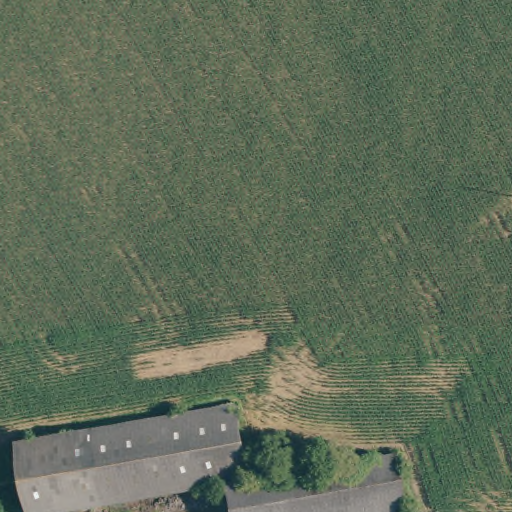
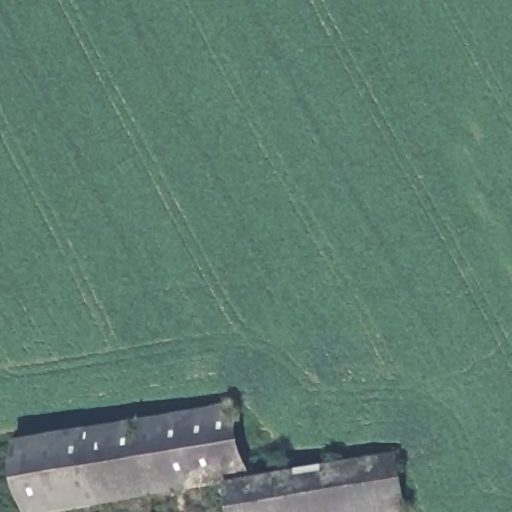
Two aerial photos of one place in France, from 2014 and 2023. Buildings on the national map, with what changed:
unchanged [(33,512),(24,512),(10,435),(237,394),(251,472),(224,477),(33,512)]
unchanged [(224,477),(251,472),(404,445),(416,512),(230,512),(224,477)]

